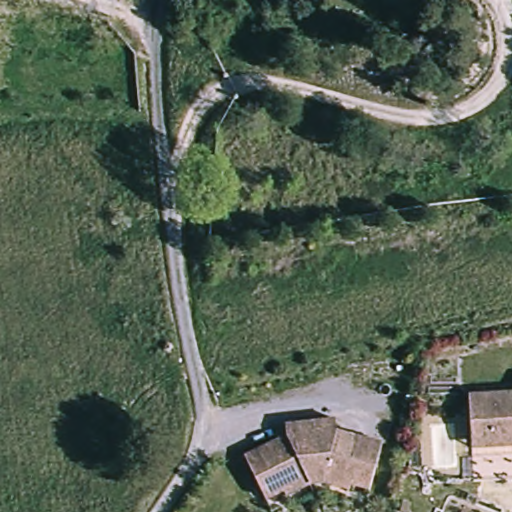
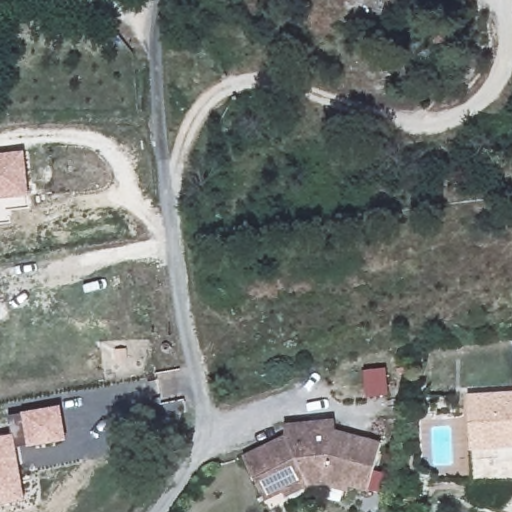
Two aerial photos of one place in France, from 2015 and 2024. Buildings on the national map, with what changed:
unchanged [(445,55),(440,74),(422,69),(426,50),(445,55)]
new [(0,198),(0,154),(26,151),(29,195),(0,198)]
unchanged [(468,392),(512,393),(512,446),(467,445),(467,437),(468,392)]
new [(67,441),(28,447),(28,445),(17,447),(26,501),(0,506),(0,436),(12,434),(9,415),(22,412),(61,405),(67,441)]
unchanged [(286,496),(284,490),(265,499),(248,459),(290,438),(290,423),(337,418),(338,431),(380,442),(370,486),(350,481),(349,487),(325,481),(326,475),(307,479),(310,485),(286,496)]

